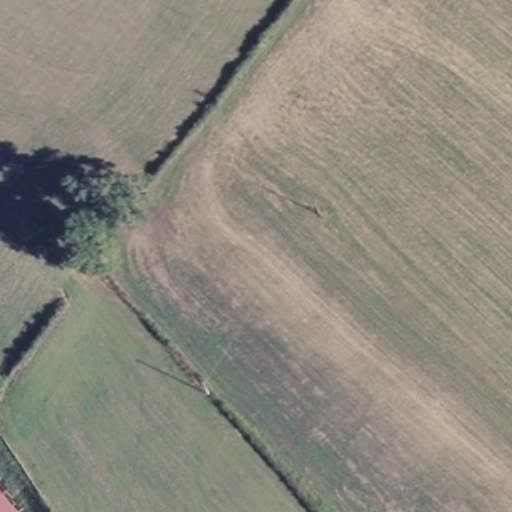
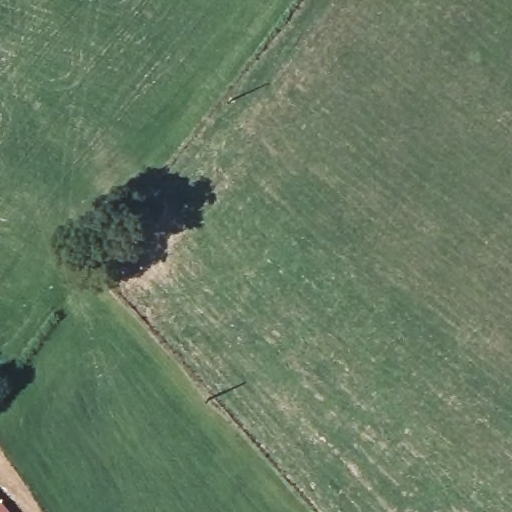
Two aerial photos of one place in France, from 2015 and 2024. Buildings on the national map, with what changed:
unchanged [(0,505),(6,512),(0,512),(0,505)]

